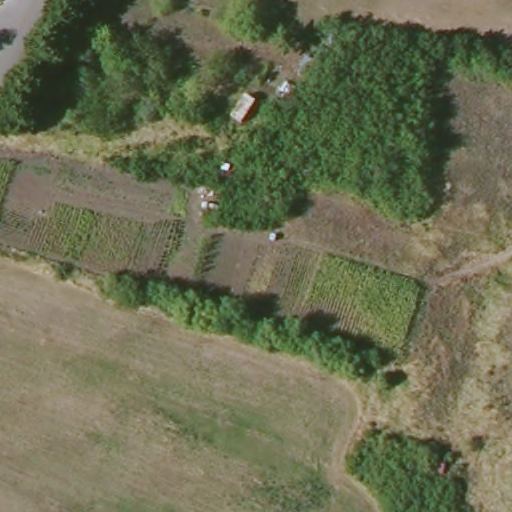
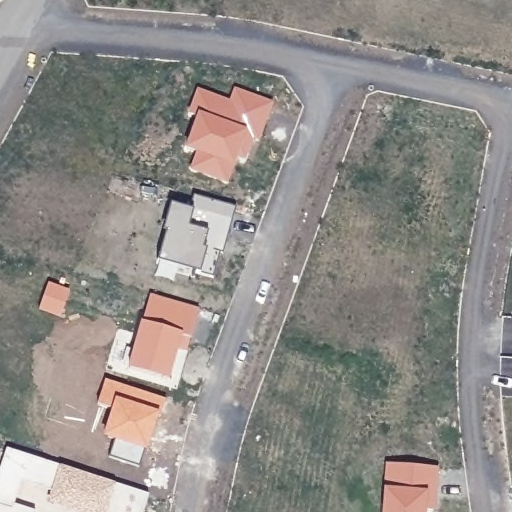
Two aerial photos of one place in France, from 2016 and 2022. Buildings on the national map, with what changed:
new [(237,156),(227,182),(193,169),(199,152),(188,148),(199,117),(191,115),(199,92),(232,104),(237,91),(271,104),(258,139),(252,137),(245,158),(237,156)]
new [(169,222),(166,222),(171,204),(190,210),(194,196),(237,207),(229,237),(220,235),(215,251),(221,252),(214,278),(196,273),(197,269),(175,262),(159,258),(162,246),(169,222)]
new [(47,285),(67,292),(58,316),(39,309),(47,285)]
new [(176,347),(167,381),(129,370),(151,295),(199,308),(190,338),(187,350),(176,347)]
new [(106,380),(166,399),(160,417),(156,416),(151,433),(147,432),(143,443),(147,445),(140,467),(109,457),(115,440),(107,437),(116,412),(97,406),(106,380)]
new [(51,499),(54,491),(44,487),(22,481),(12,512),(0,512),(0,471),(7,450),(149,495),(143,512),(90,512),(51,499)]
new [(426,510),(425,512),(385,512),(389,464),(438,468),(436,496),(435,511),(426,510)]
new [(22,481),(44,487),(36,512),(12,512),(22,481)]

